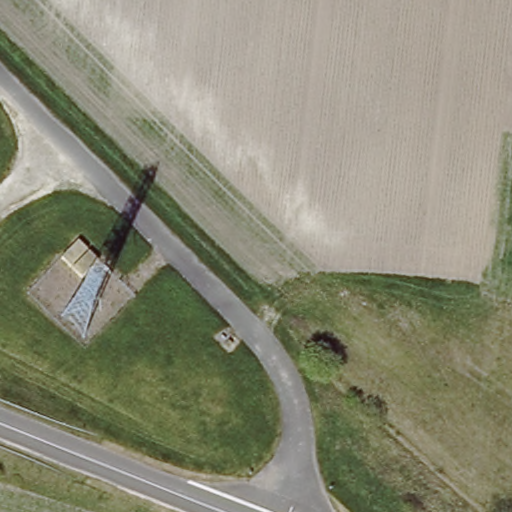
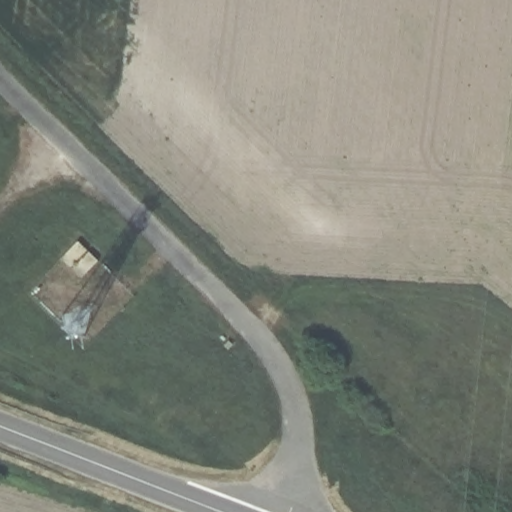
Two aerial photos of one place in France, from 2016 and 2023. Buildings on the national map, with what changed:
unchanged [(102,260),(84,277),(60,256),(78,240),(102,260)]

